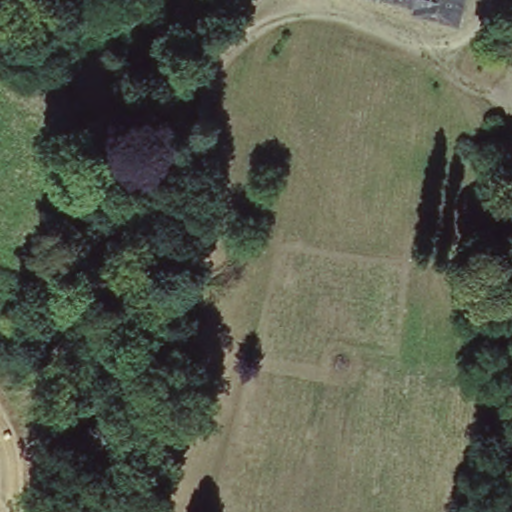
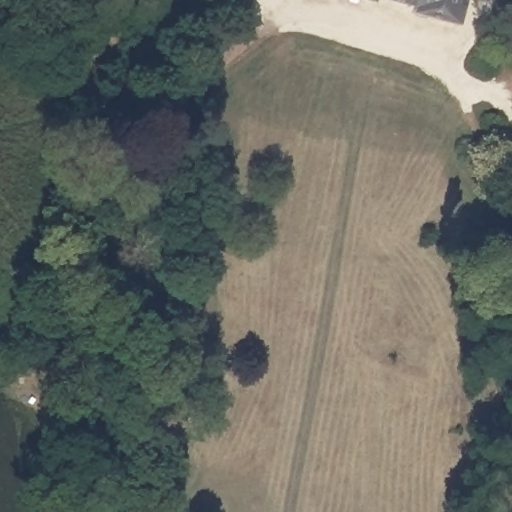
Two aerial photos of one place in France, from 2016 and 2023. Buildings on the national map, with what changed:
unchanged [(414,9),(415,2),(409,0),(463,0),(457,20),(414,9)]
unchanged [(512,345),(486,346),(485,313),(512,312),(512,345)]

